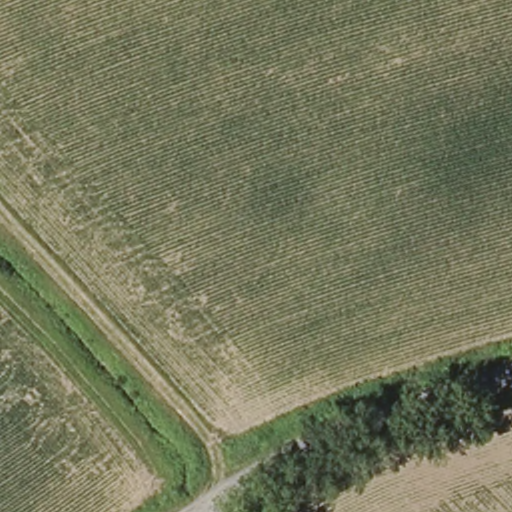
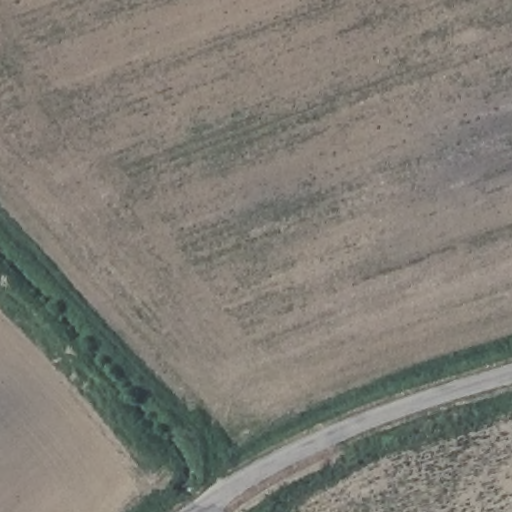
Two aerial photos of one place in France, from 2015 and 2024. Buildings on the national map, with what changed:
[]

